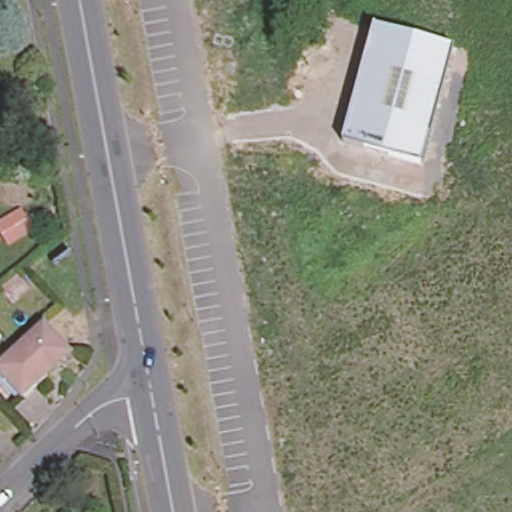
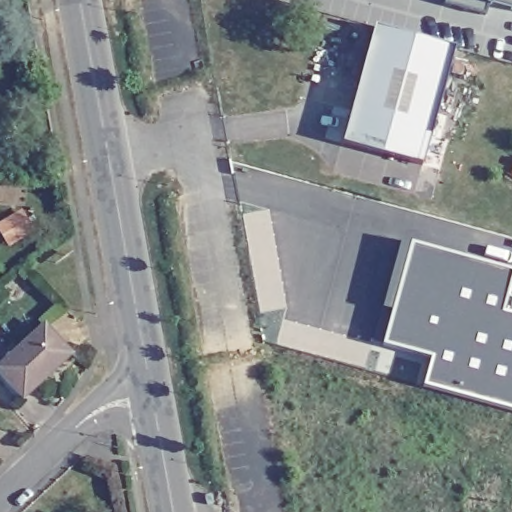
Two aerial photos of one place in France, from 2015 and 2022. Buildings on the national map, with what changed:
new [(484,15),(446,5),(447,0),(512,0),(512,11),(488,4),(484,15)]
unchanged [(374,27),(451,49),(419,163),(341,141),(374,27)]
new [(512,286),(506,306),(512,308),(512,407),(428,385),(438,356),(388,342),(417,240),(512,267),(512,286)]
unchanged [(45,332),(69,362),(20,403),(0,377),(0,371),(45,332)]

